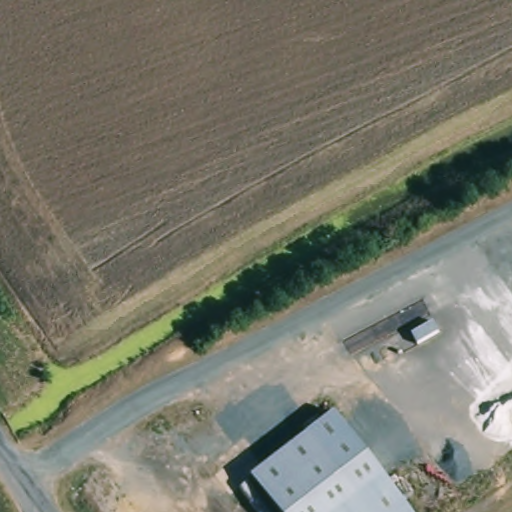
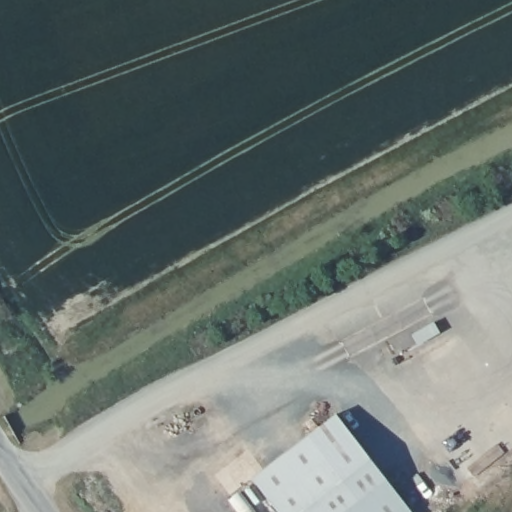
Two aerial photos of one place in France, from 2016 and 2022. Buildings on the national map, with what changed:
unchanged [(328,412),(378,475),(388,487),(408,512),(276,512),(248,477),(272,457),(328,412)]

